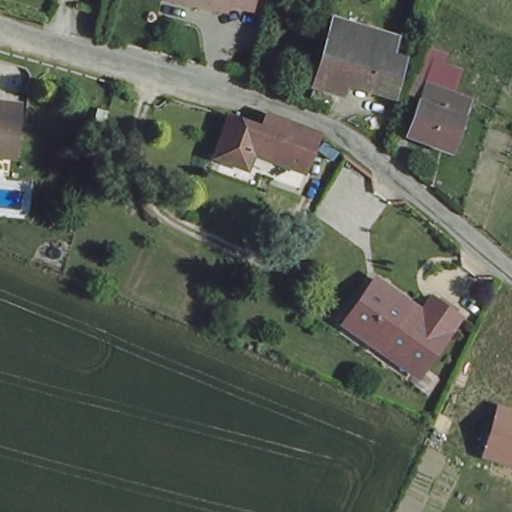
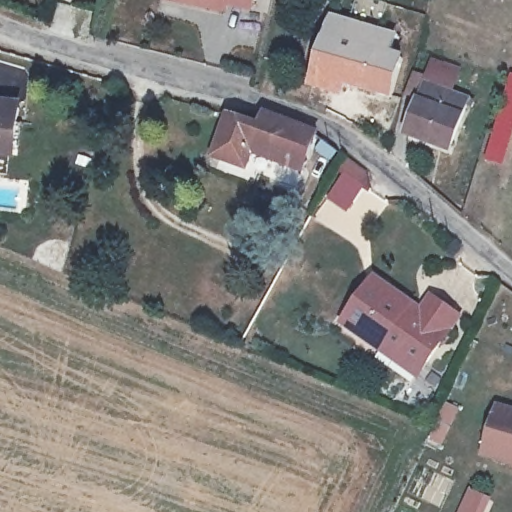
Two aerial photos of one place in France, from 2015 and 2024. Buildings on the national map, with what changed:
unchanged [(247,11),(223,6),(221,13),(190,6),(165,0),(250,0),(247,11)]
unchanged [(315,92),(318,79),(328,30),(389,44),(388,59),(404,63),(396,97),(349,86),(346,99),(315,92)]
unchanged [(452,54),(449,66),(462,70),(454,94),(413,79),(425,46),(452,54)]
new [(511,74),(512,74),(512,139),(504,166),(485,161),(511,74)]
unchanged [(408,134),(419,102),(424,87),(467,103),(463,119),(452,151),(408,134)]
unchanged [(0,107),(22,110),(18,149),(16,158),(0,156),(0,107)]
unchanged [(253,157),(248,173),(216,162),(230,119),(261,130),(265,121),(318,135),(304,176),(253,157)]
unchanged [(396,361),(339,325),(369,278),(405,301),(418,309),(425,297),(456,316),(426,367),(420,376),(396,361)]
unchanged [(512,412),(512,465),(491,461),(495,447),(487,444),(498,408),(512,412)]

